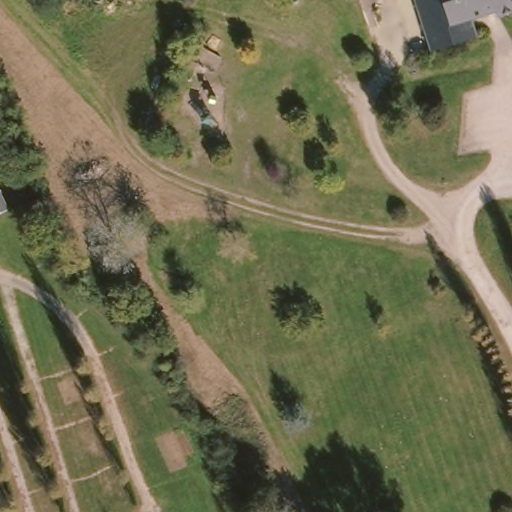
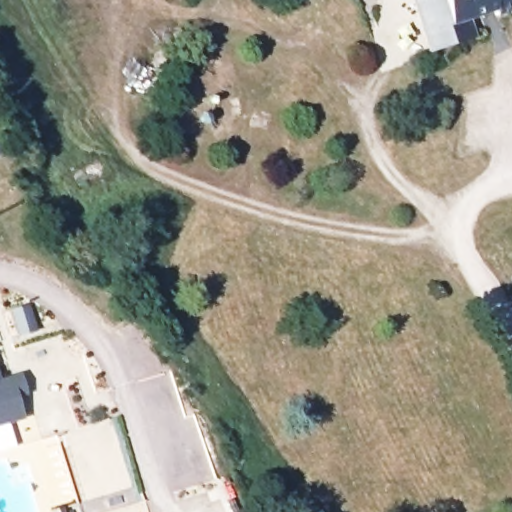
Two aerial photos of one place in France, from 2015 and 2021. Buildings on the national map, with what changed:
unchanged [(498,9),(471,18),(478,39),(430,56),(414,0),(416,0),(512,0),(512,12),(500,16),(498,9)]
new [(18,370),(23,390),(14,392),(20,414),(0,419),(0,375),(18,370)]

